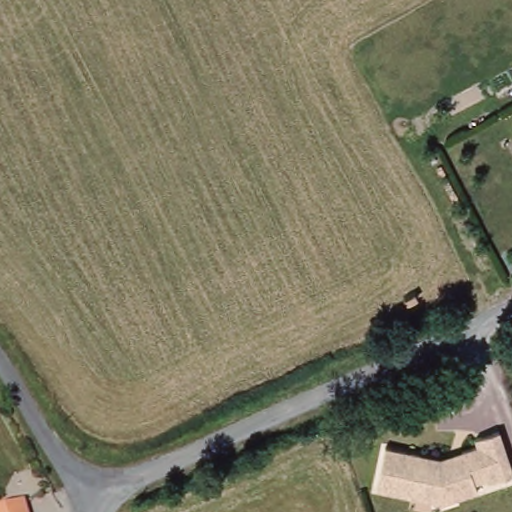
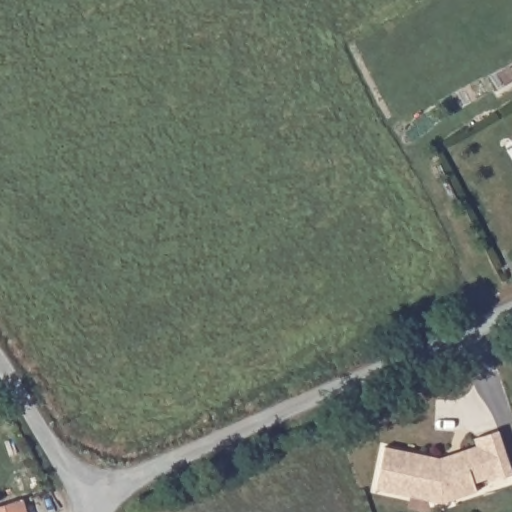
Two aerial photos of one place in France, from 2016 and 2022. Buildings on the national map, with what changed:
unchanged [(407,502),(372,494),(380,452),(415,460),(434,464),(458,456),(473,451),(470,443),(494,436),(509,479),(484,487),(483,483),(469,488),(473,496),(452,503),(438,508),(407,502)]
unchanged [(0,503),(14,500),(28,497),(34,496),(36,512),(4,512),(0,503)]
unchanged [(4,512),(0,512),(0,503),(4,512)]

